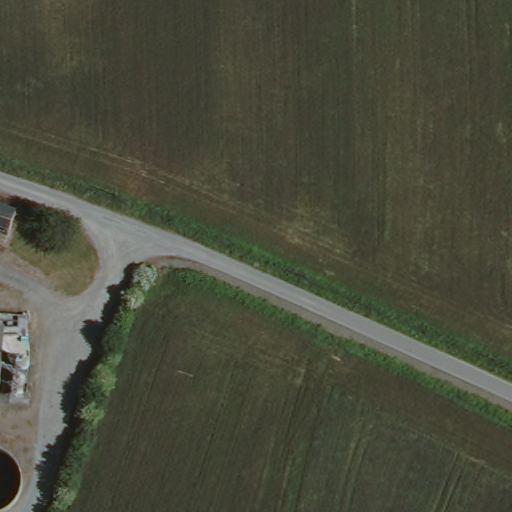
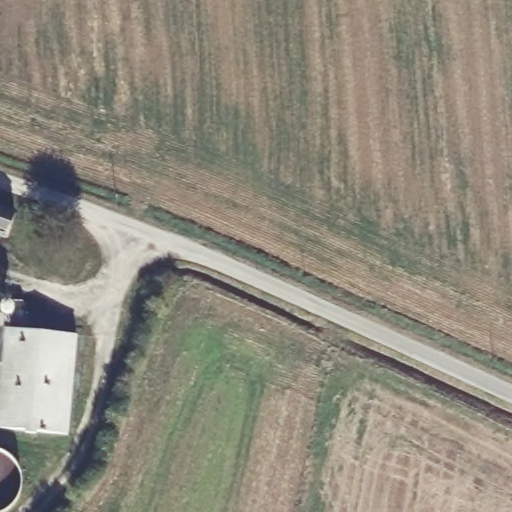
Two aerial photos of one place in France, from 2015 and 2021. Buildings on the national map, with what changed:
unchanged [(1,234),(0,238),(0,205),(15,211),(6,236),(1,234)]
demolished [(2,329),(0,355),(0,329),(2,329)]
new [(76,337),(69,437),(0,429),(0,329),(76,337)]

